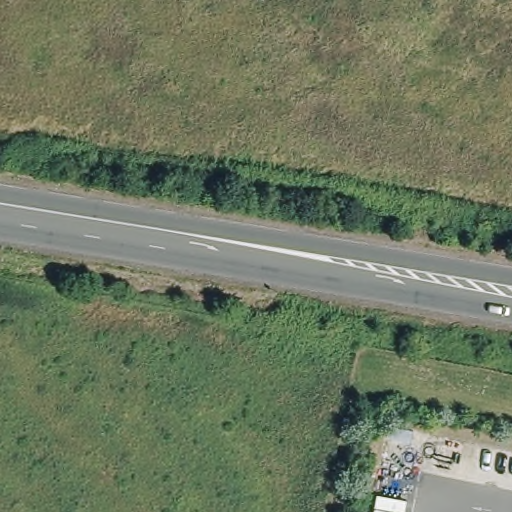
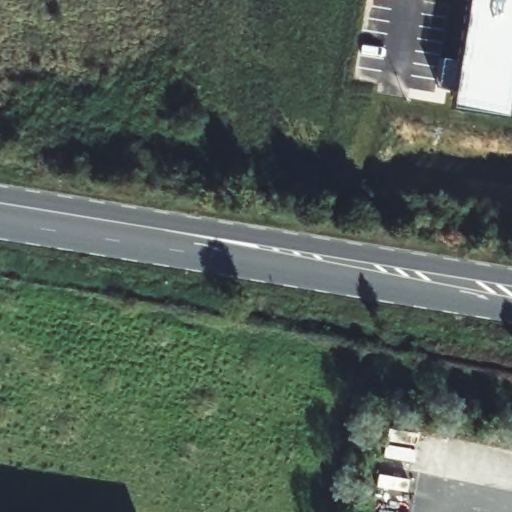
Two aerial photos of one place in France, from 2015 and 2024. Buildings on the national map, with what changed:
new [(507,119),(451,110),(469,0),(512,0),(512,92),(507,119)]

